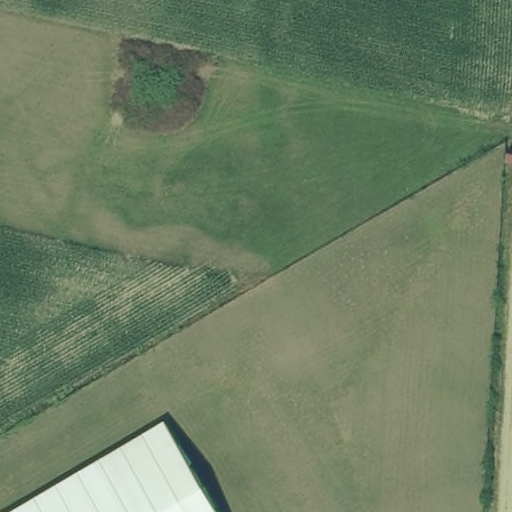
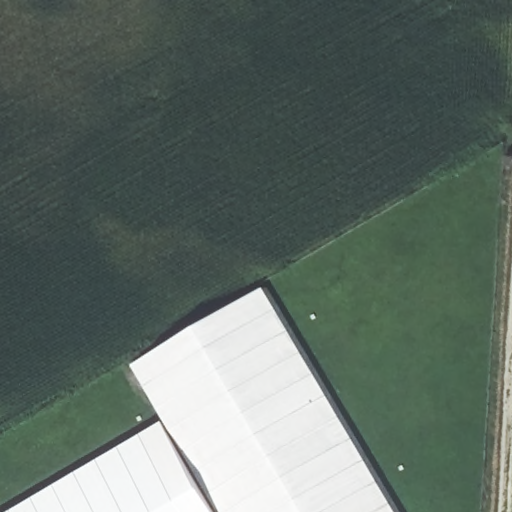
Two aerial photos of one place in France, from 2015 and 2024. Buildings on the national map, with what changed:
new [(162,415),(133,365),(266,290),(394,512),(220,512),(162,415)]
unchanged [(162,415),(220,512),(4,512),(162,415)]

